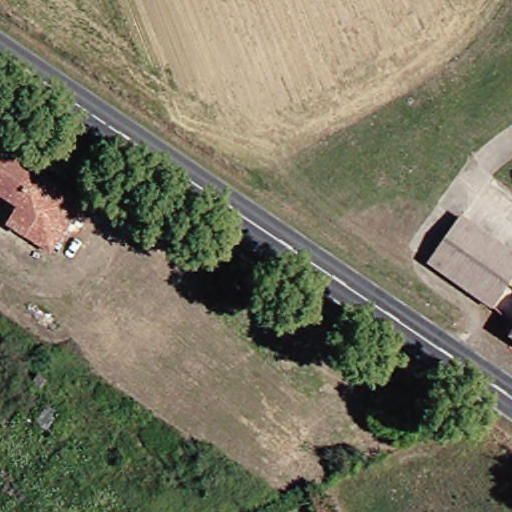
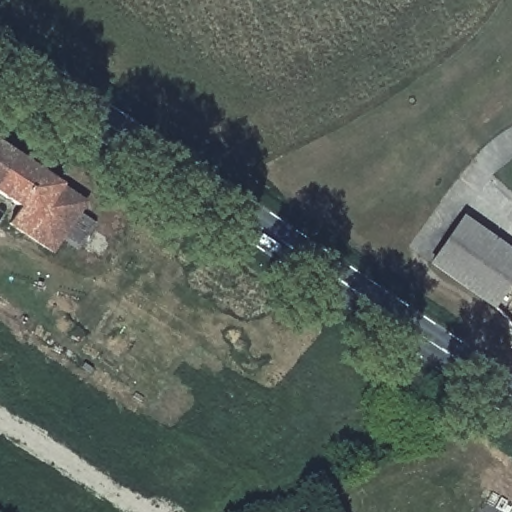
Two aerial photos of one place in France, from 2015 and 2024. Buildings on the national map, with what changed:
unchanged [(91,204),(56,255),(13,228),(25,209),(0,193),(0,143),(91,204)]
unchanged [(512,287),(501,303),(436,260),(467,213),(512,243),(512,287)]

